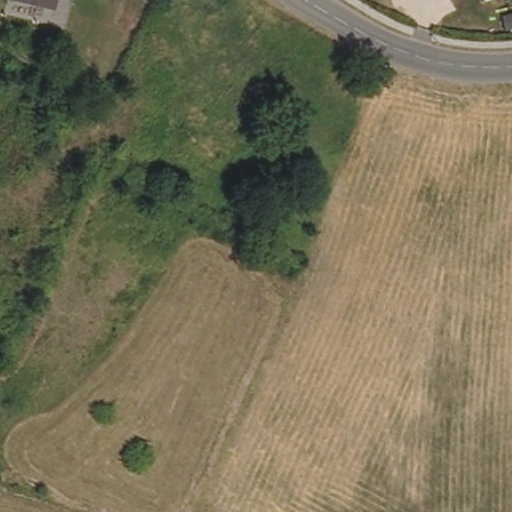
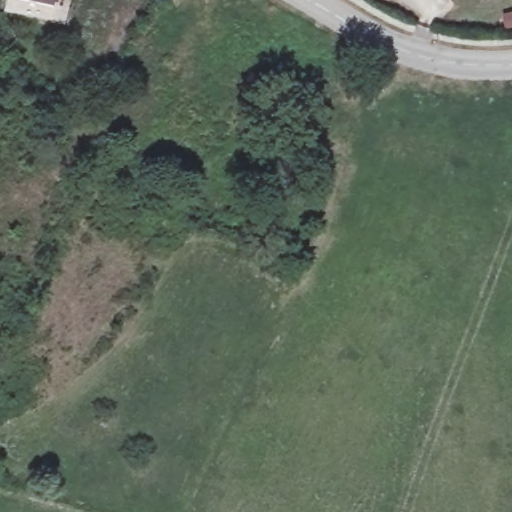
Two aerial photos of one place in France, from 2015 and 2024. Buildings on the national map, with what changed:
unchanged [(10,1),(10,0),(60,0),(57,10),(10,1)]

